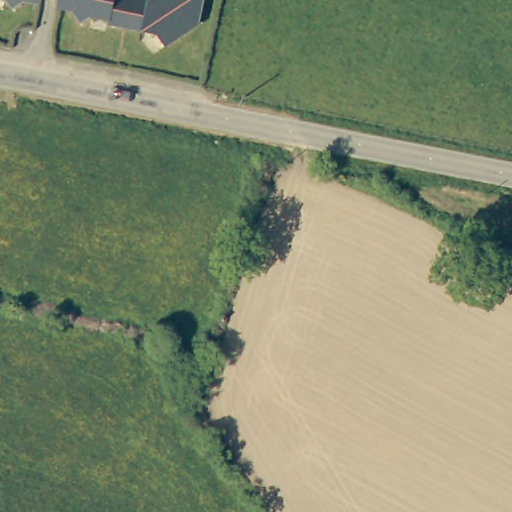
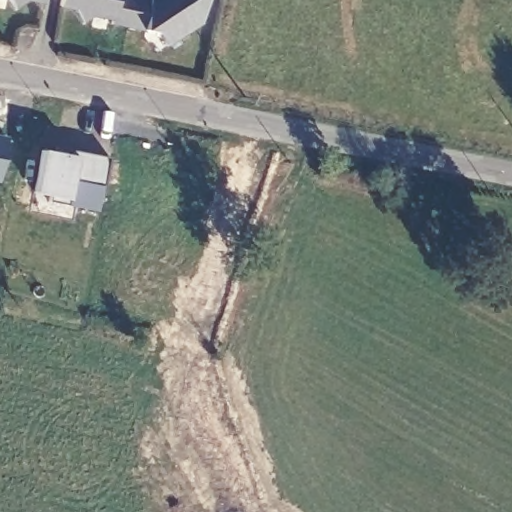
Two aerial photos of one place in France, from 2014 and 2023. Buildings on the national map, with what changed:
unchanged [(8,0),(11,0),(10,2),(8,0)]
unchanged [(106,17),(92,12),(79,22),(72,10),(56,5),(57,0),(203,0),(197,20),(166,41),(157,31),(106,21),(106,17)]
new [(1,182),(0,181),(0,138),(9,140),(3,169),(1,182)]
new [(75,182),(70,207),(50,204),(52,196),(36,193),(44,151),(56,154),(57,148),(69,151),(112,159),(107,189),(75,182)]

